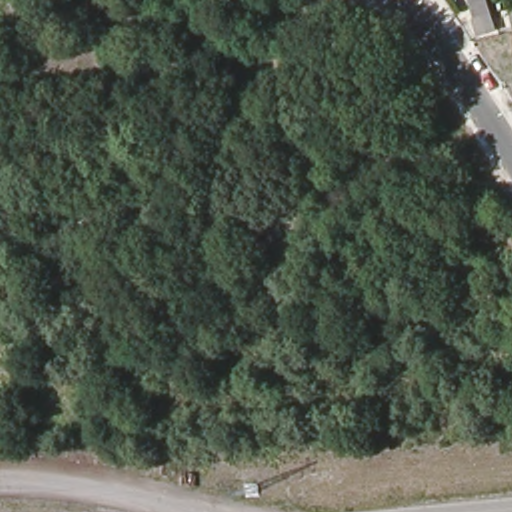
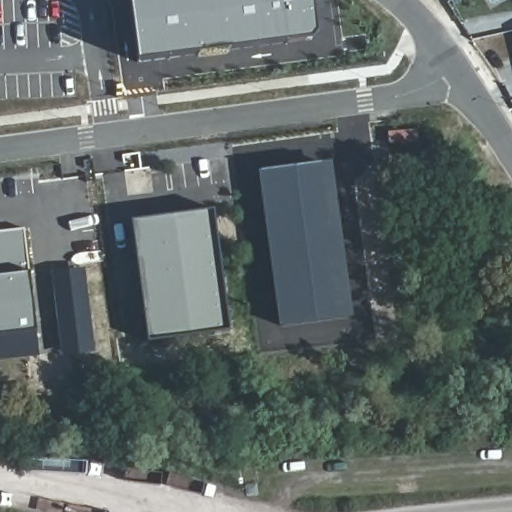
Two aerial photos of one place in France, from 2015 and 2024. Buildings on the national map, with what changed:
new [(312,1),(316,39),(136,60),(130,0),(282,0),(282,5),(312,1)]
new [(331,161),(352,318),(279,327),(258,171),(331,161)]
new [(213,210),(229,332),(147,341),(131,221),(213,210)]
new [(35,331),(0,335),(0,231),(22,229),(35,331)]
new [(91,349),(65,352),(55,275),(81,272),(91,349)]
new [(39,356),(0,360),(0,335),(35,331),(39,356)]

